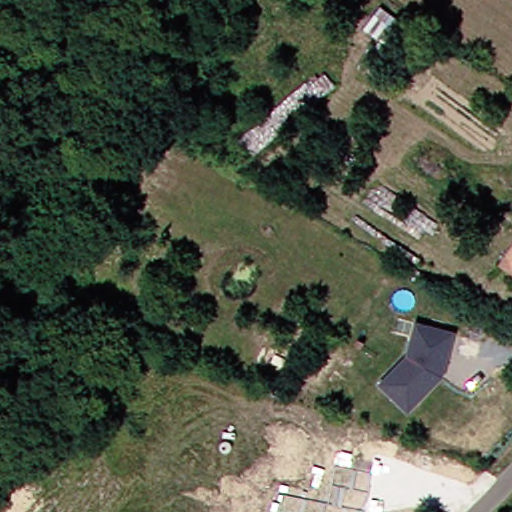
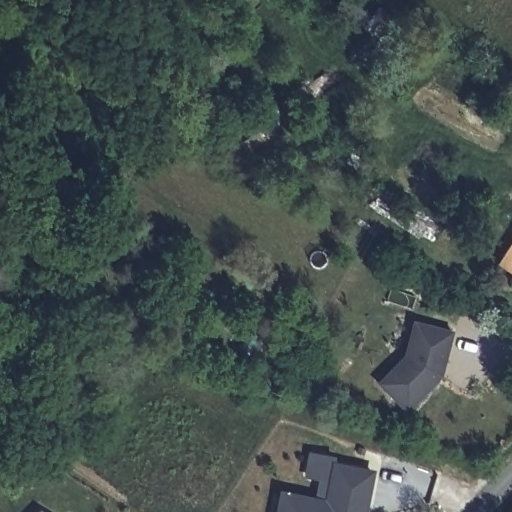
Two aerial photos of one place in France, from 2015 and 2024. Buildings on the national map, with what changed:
unchanged [(512,229),(512,277),(489,261),(512,229)]
unchanged [(441,374),(410,412),(379,386),(405,356),(409,329),(413,313),(426,317),(453,324),(441,374)]
new [(327,498),(335,464),(375,472),(368,512),(274,512),(279,490),(327,498)]

